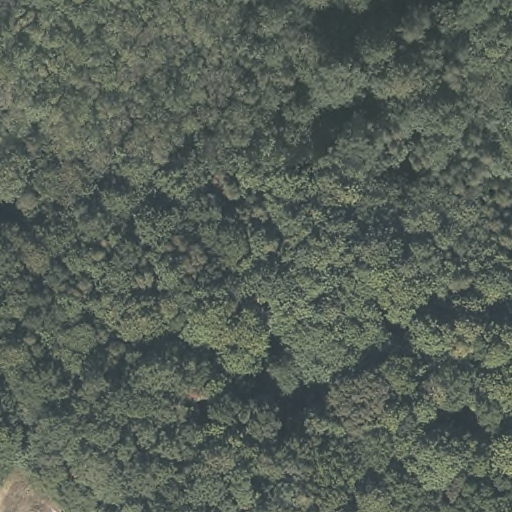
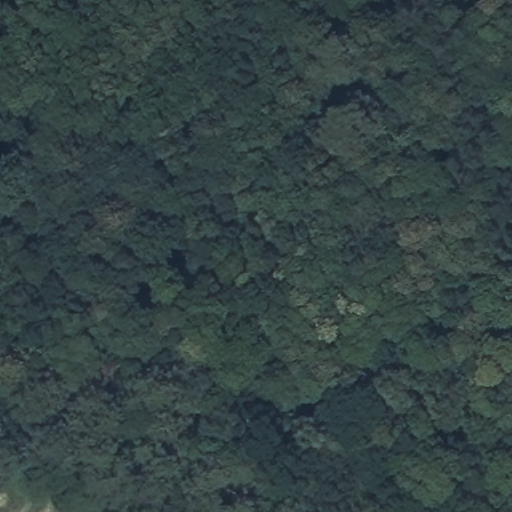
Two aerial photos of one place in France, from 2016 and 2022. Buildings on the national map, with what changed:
[]

